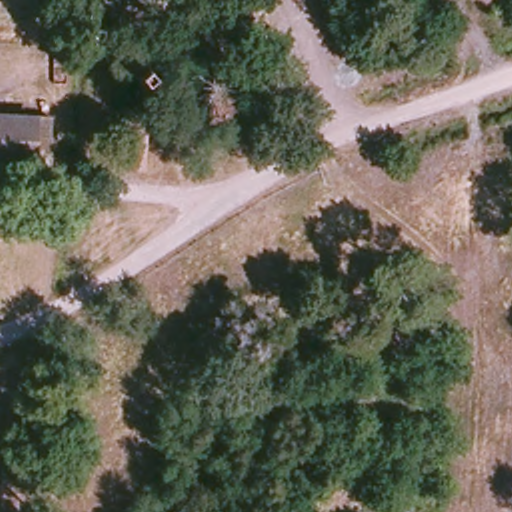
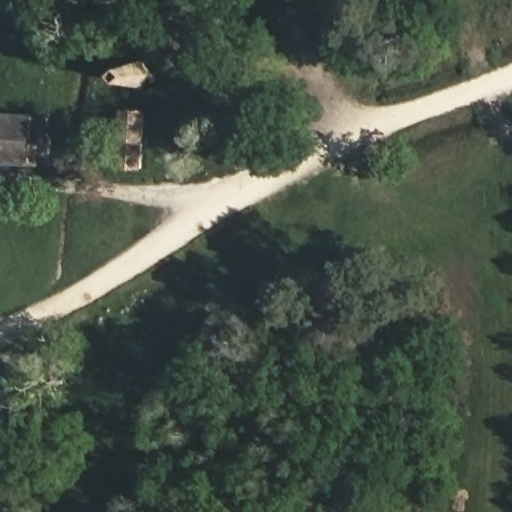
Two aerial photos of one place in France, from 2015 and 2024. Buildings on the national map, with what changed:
unchanged [(34,147),(52,149),(51,168),(0,162),(0,107),(36,110),(34,147)]
unchanged [(144,131),(142,175),(115,174),(118,129),(144,131)]

